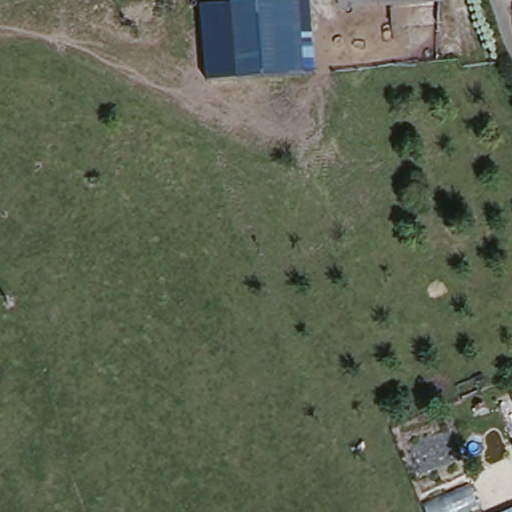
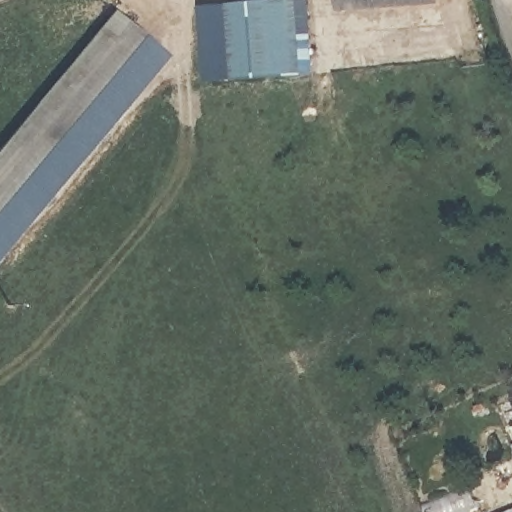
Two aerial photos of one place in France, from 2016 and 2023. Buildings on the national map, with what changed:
unchanged [(202,4),(258,0),(306,0),(312,72),(207,78),(202,4)]
unchanged [(358,13),(356,0),(423,0),(358,13)]
new [(166,54),(0,253),(0,145),(115,8),(166,54)]

